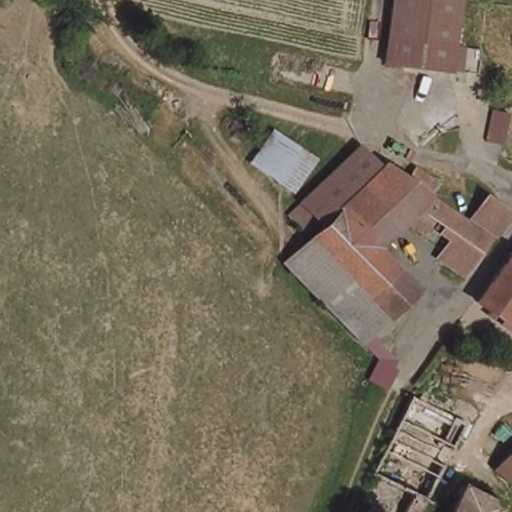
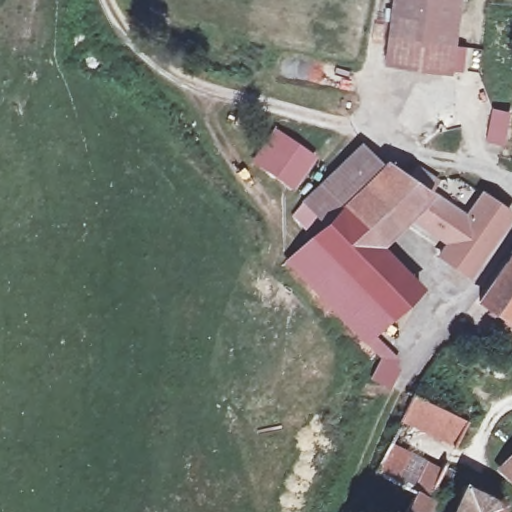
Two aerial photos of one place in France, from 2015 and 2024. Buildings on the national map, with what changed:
unchanged [(385,64),(393,0),(464,0),(455,73),(385,64)]
unchanged [(271,133),(310,155),(291,188),(252,165),(271,133)]
unchanged [(403,228),(385,242),(404,263),(339,316),(279,264),(313,226),(300,207),(363,147),(371,159),(384,155),(463,217),(480,185),(512,202),(512,213),(465,279),(403,228)]
unchanged [(509,257),(512,252),(512,332),(477,306),(509,257)]
unchanged [(404,263),(428,294),(368,348),(339,316),(404,263)]
unchanged [(378,339),(389,358),(398,363),(398,371),(389,392),(369,382),(379,359),(368,348),(378,339)]
demolished [(416,394),(469,422),(446,474),(432,502),(416,493),(386,477),(372,469),(416,394)]
new [(403,422),(417,395),(467,421),(453,448),(403,422)]
unchanged [(512,455),(512,486),(498,477),(512,455)]
unchanged [(468,487),(504,507),(501,512),(455,512),(468,487)]

